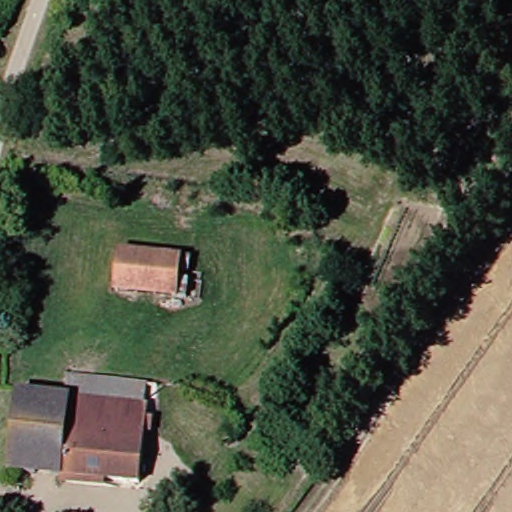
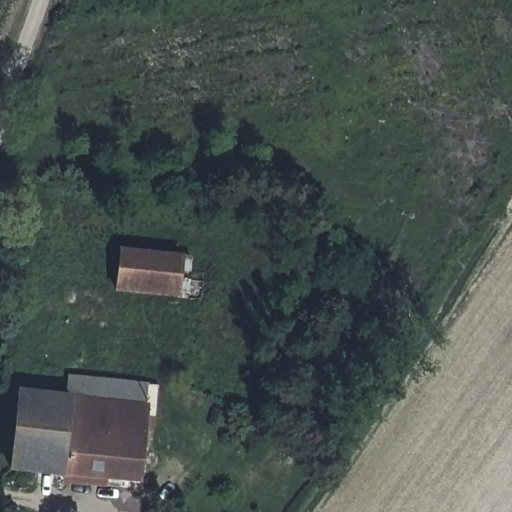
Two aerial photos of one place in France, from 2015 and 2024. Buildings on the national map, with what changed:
unchanged [(180,293),(120,287),(124,246),(186,252),(180,293)]
unchanged [(65,394),(66,381),(87,383),(86,397),(157,405),(147,480),(20,465),(32,390),(65,394)]

